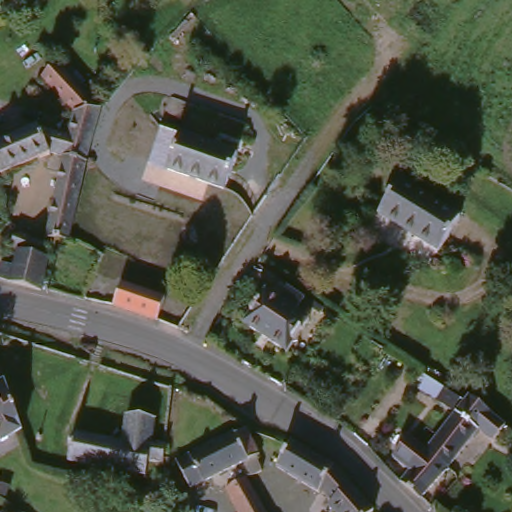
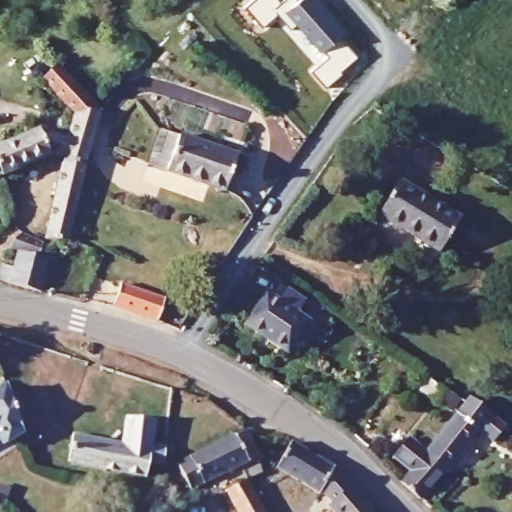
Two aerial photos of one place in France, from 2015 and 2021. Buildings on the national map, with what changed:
new [(249,0),(279,0),(280,0),(313,0),(343,31),(339,35),(355,54),(338,69),(340,71),(325,86),(309,71),(326,55),(297,21),(290,27),(277,13),(261,26),(242,5),(249,0)]
unchanged [(75,142),(81,118),(45,85),(56,75),(61,70),(107,115),(97,142),(92,160),(72,231),(67,248),(47,242),(68,162),(52,158),(4,181),(2,177),(0,179),(0,150),(41,133),(75,142)]
unchanged [(215,197),(160,176),(172,139),(227,160),(215,197)]
unchanged [(433,257),(377,219),(399,184),(455,222),(433,257)]
unchanged [(11,252),(18,240),(25,238),(40,247),(37,251),(34,258),(51,263),(45,294),(44,298),(10,289),(0,284),(0,279),(4,268),(15,271),(20,255),(11,252)]
unchanged [(159,302),(150,324),(107,310),(115,287),(159,302)]
unchanged [(273,357),(230,328),(252,296),(295,323),(273,357)]
unchanged [(423,395),(431,383),(463,404),(455,415),(423,395)]
unchanged [(20,440),(1,452),(0,452),(0,398),(3,395),(20,440)]
unchanged [(471,402),(491,418),(508,434),(493,450),(480,437),(450,472),(446,470),(427,455),(468,406),(471,402)]
unchanged [(140,485),(63,471),(67,442),(116,450),(122,423),(150,428),(147,451),(160,453),(158,473),(143,471),(140,485)]
unchanged [(245,468),(191,493),(180,467),(250,433),(262,458),(258,460),(265,476),(252,483),(245,468)]
unchanged [(411,474),(393,460),(410,441),(427,455),(446,470),(450,472),(424,504),(402,486),(405,482),(411,474)]
unchanged [(335,507),(322,494),(319,497),(278,468),(295,445),(337,474),(376,512),(335,512),(332,509),(335,507)]
unchanged [(267,512),(239,512),(231,495),(252,483),(267,512)]
unchanged [(175,494),(178,511),(171,512),(142,512),(141,498),(165,495),(175,494)]

